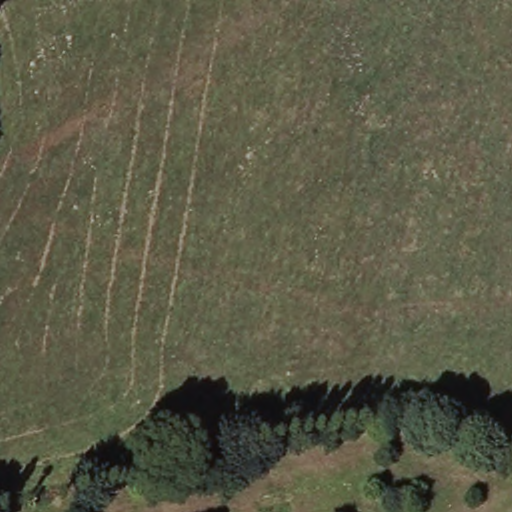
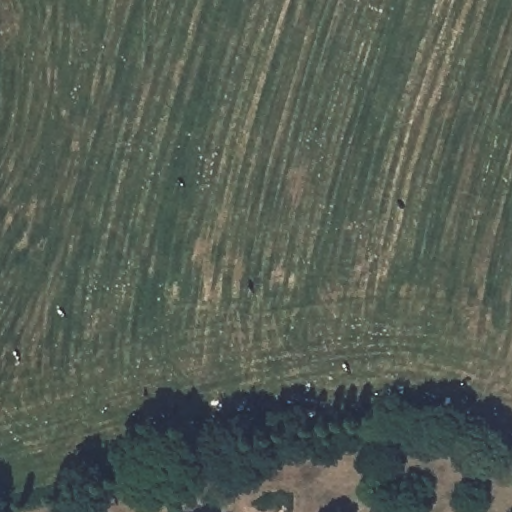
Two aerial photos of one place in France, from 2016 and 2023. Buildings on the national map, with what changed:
[]

